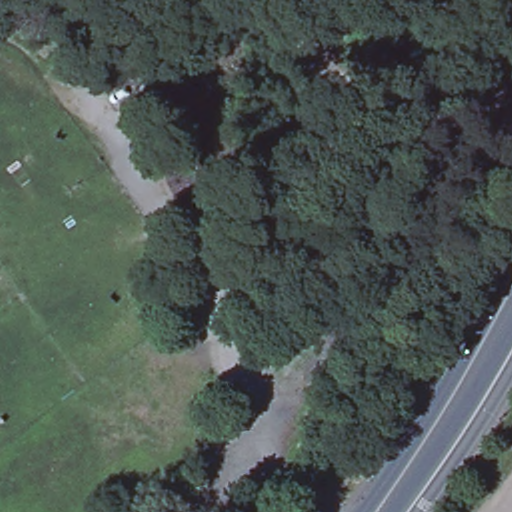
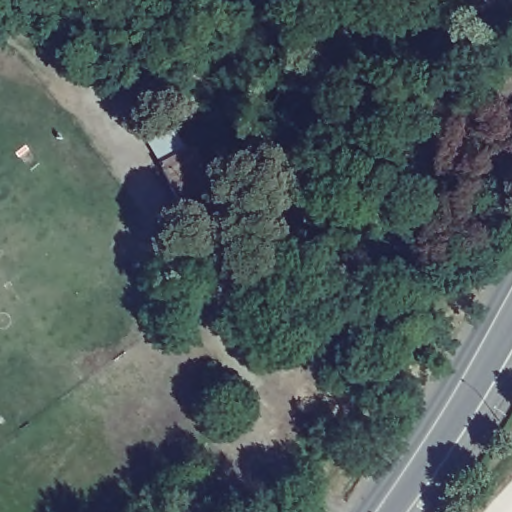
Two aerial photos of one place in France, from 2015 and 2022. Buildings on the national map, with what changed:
unchanged [(512,110),(512,158),(507,166),(487,154),(512,110)]
unchanged [(181,207),(160,163),(196,153),(213,192),(181,207)]

